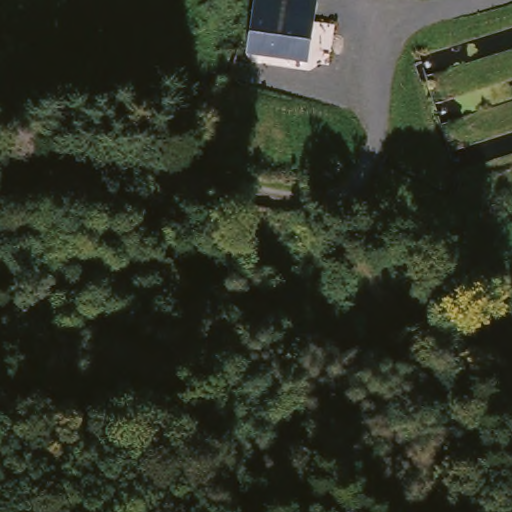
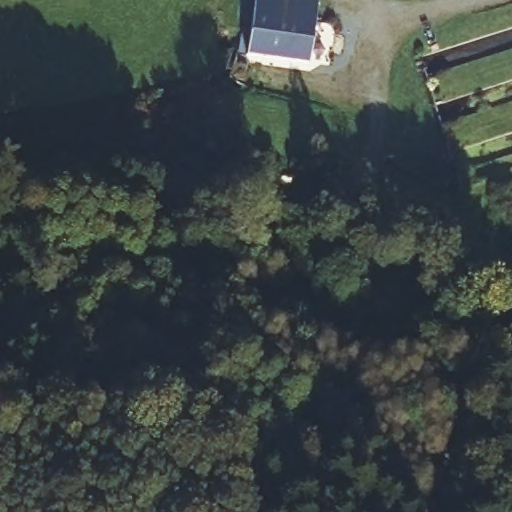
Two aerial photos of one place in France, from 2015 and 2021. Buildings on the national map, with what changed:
unchanged [(246,60),(255,0),(317,0),(306,67),(246,60)]

